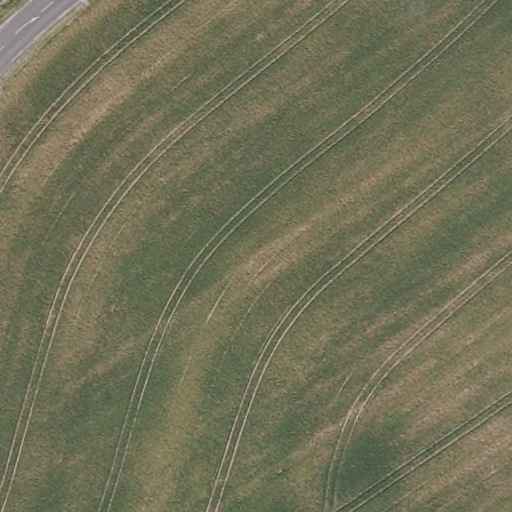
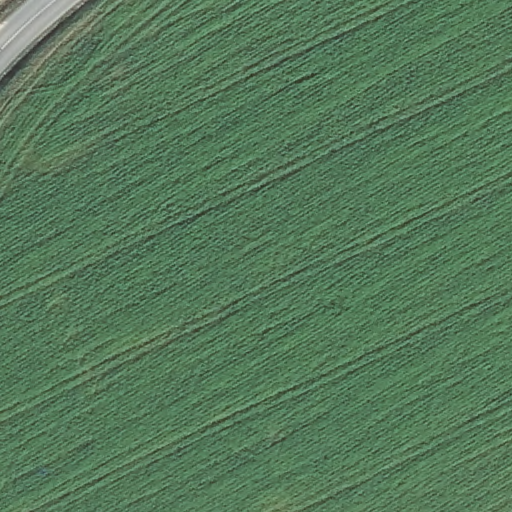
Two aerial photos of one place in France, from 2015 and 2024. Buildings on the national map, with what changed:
[]

